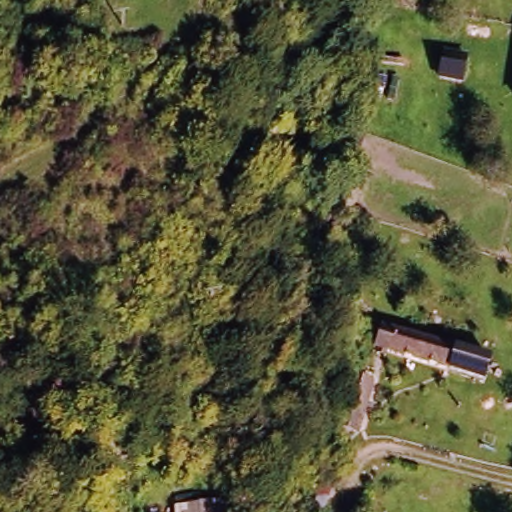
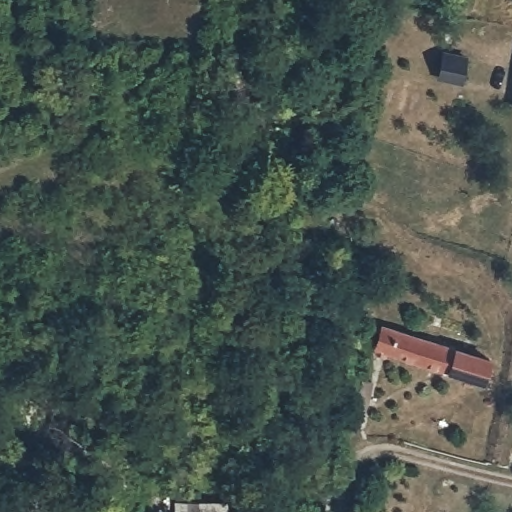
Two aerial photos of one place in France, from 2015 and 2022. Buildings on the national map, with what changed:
unchanged [(462,66),(460,88),(440,86),(442,63),(462,66)]
unchanged [(455,346),(447,370),(386,352),(394,328),(455,346)]
unchanged [(357,382),(371,385),(365,422),(348,418),(342,417),(348,381),(357,382)]

